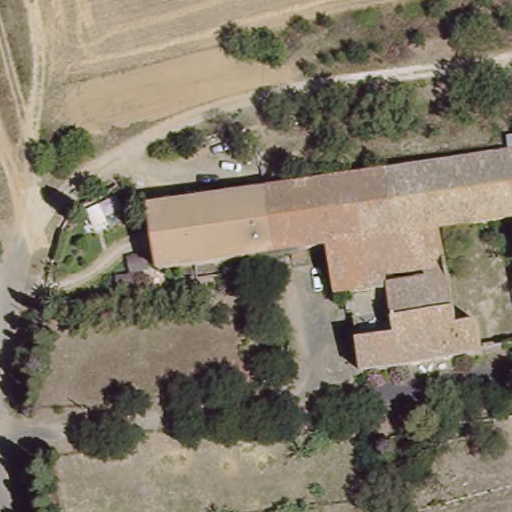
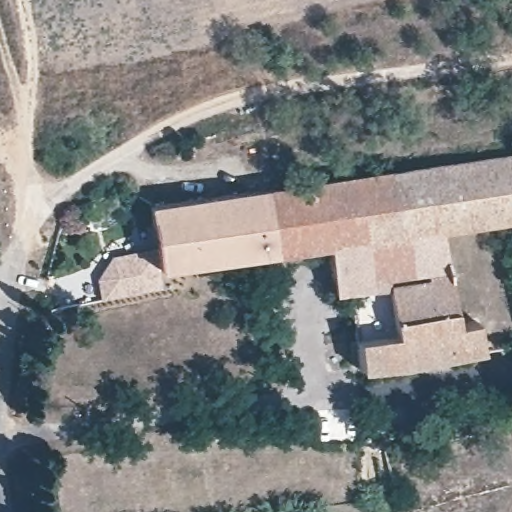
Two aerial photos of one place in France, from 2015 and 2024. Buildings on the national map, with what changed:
unchanged [(329,252),(275,260),(265,187),(512,155),(512,229),(442,238),(329,252)]
unchanged [(275,260),(257,262),(166,274),(160,275),(157,247),(150,202),(265,187),(275,260)]
unchanged [(442,238),(456,328),(475,327),(480,357),(362,373),(351,297),(335,298),(329,252),(442,238)]
new [(160,275),(166,274),(167,285),(103,294),(100,272),(115,253),(157,247),(160,275)]

